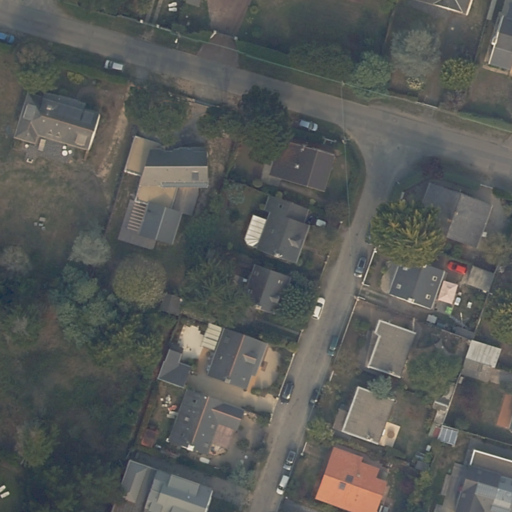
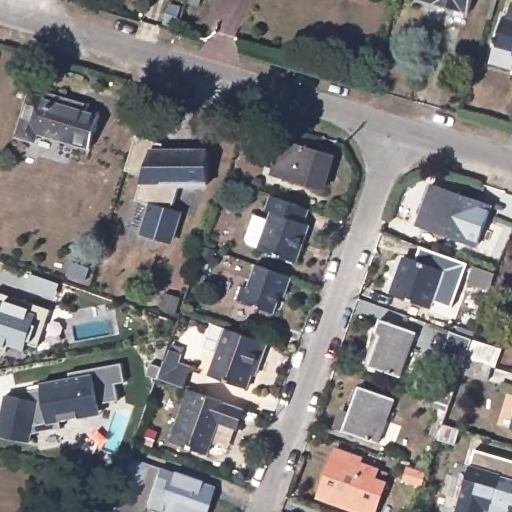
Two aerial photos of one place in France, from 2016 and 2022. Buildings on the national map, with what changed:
unchanged [(407,0),(471,0),(465,18),(407,1),(407,0)]
unchanged [(493,61),(499,44),(496,43),(506,11),(510,12),(512,5),(512,66),(493,61)]
unchanged [(46,100),(48,94),(77,102),(75,108),(100,115),(90,148),(40,134),(36,141),(17,135),(30,95),(46,100)]
unchanged [(212,183),(181,184),(175,210),(183,215),(173,245),(142,235),(150,204),(139,200),(143,185),(143,176),(128,172),(139,139),(166,144),(168,150),(208,150),(212,183)]
unchanged [(335,157),(325,189),(273,173),(283,141),(335,157)]
unchanged [(488,210),(474,250),(437,238),(413,230),(422,207),(427,192),(442,196),(465,203),(488,210)]
unchanged [(314,208),(308,223),(315,225),(301,263),(262,249),(263,247),(252,243),(250,238),(258,214),(272,219),(275,211),(270,210),(275,195),(314,208)]
demolished [(164,241),(180,247),(171,270),(155,265),(164,241)]
unchanged [(200,266),(202,260),(207,247),(217,251),(214,264),(212,263),(210,270),(200,266)]
unchanged [(447,273),(432,311),(393,296),(407,258),(447,273)]
unchanged [(287,291),(282,289),(275,314),(243,303),(244,301),(239,299),(243,287),(248,289),(257,265),(291,277),(287,291)]
unchanged [(468,284),(475,266),(496,273),(490,292),(468,284)]
new [(37,346),(27,343),(24,351),(7,344),(5,350),(0,348),(0,292),(50,309),(37,346)]
unchanged [(382,336),(376,334),(381,321),(417,334),(401,378),(370,367),(382,336)]
unchanged [(253,379),(248,395),(210,381),(220,357),(205,352),(213,328),(234,335),(269,348),(260,371),(257,380),(253,379)]
unchanged [(472,374),(477,358),(476,358),(478,352),(482,341),(511,350),(505,366),(503,366),(499,381),(472,374)]
unchanged [(190,365),(189,370),(183,386),(159,378),(169,352),(170,351),(172,345),(183,349),(181,354),(179,361),(190,365)]
new [(100,414),(60,422),(61,428),(32,433),(31,441),(0,434),(0,417),(5,395),(21,398),(21,391),(42,387),(42,383),(71,377),(71,374),(121,365),(125,383),(115,384),(118,400),(100,406),(100,414)]
unchanged [(451,431),(442,428),(448,412),(443,410),(445,405),(446,400),(450,389),(455,391),(461,374),(470,377),(466,390),(460,405),(459,410),(454,424),(451,431)]
unchanged [(244,408),(236,428),(219,421),(205,454),(170,441),(189,389),(217,398),(232,404),(244,408)]
unchanged [(351,415),(361,390),(396,402),(380,448),(349,436),(355,417),(351,415)]
unchanged [(512,427),(512,429),(511,429),(512,427)]
unchanged [(458,512),(477,450),(512,460),(512,512),(458,512)]
unchanged [(361,467),(378,474),(375,483),(386,487),(378,512),(353,512),(320,501),(335,453),(362,463),(361,467)]
unchanged [(214,488),(206,512),(115,512),(132,462),(157,469),(214,488)]

